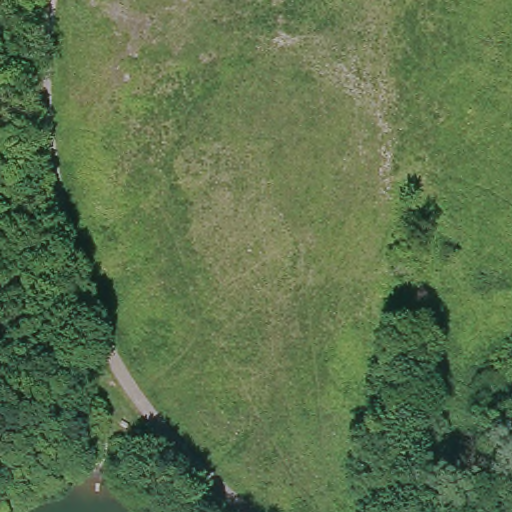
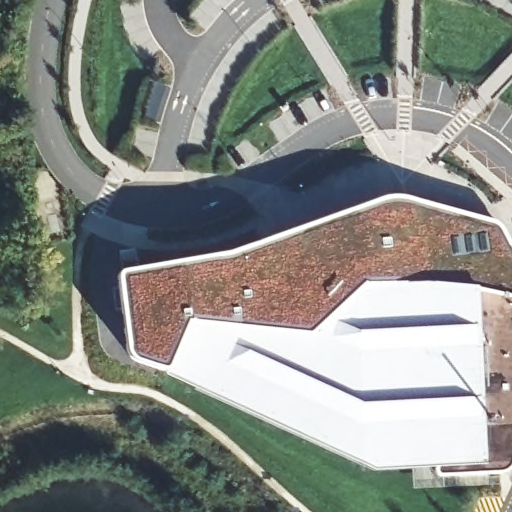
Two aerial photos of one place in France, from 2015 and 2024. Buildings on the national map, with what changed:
new [(371,201),(387,196),(402,198),(499,223),(512,250),(512,463),(510,468),(500,474),(432,477),(432,469),(370,472),(125,361),(113,273),(220,254),(371,201)]

